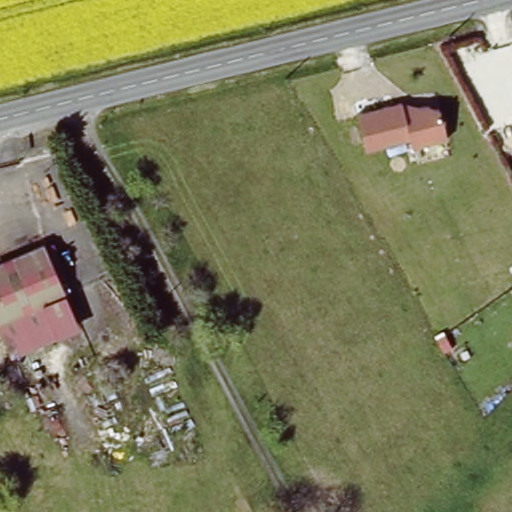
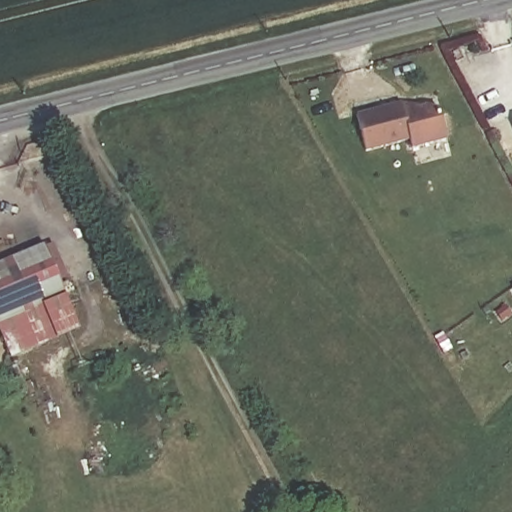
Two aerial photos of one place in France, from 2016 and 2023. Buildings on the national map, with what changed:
unchanged [(403,99),(420,105),(427,104),(440,108),(446,139),(411,147),(408,138),(366,150),(357,112),(403,99)]
unchanged [(0,317),(0,263),(52,244),(68,292),(0,317)]
unchanged [(82,331),(13,358),(0,322),(0,317),(68,292),(82,331)]

